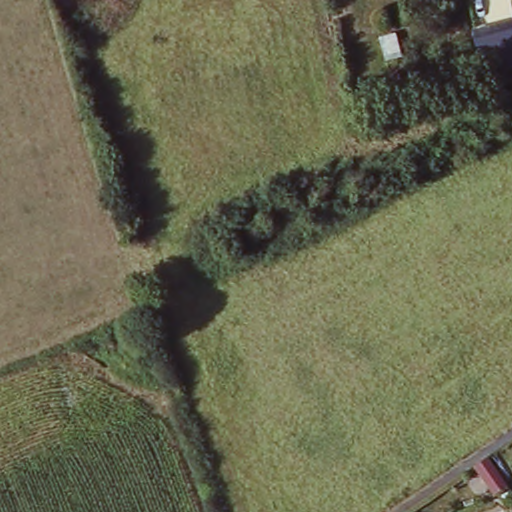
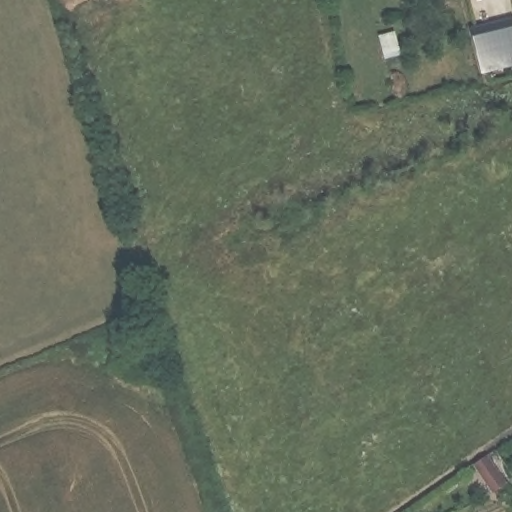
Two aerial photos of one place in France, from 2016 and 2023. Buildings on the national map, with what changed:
unchanged [(512,41),(512,68),(475,76),(465,38),(508,27),(512,41)]
unchanged [(392,63),(382,65),(376,46),(387,42),(392,63)]

